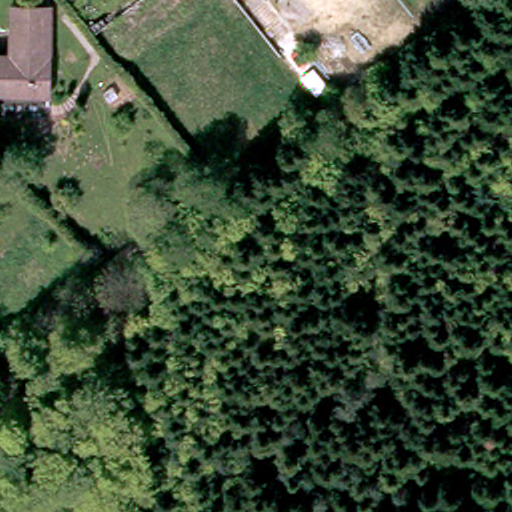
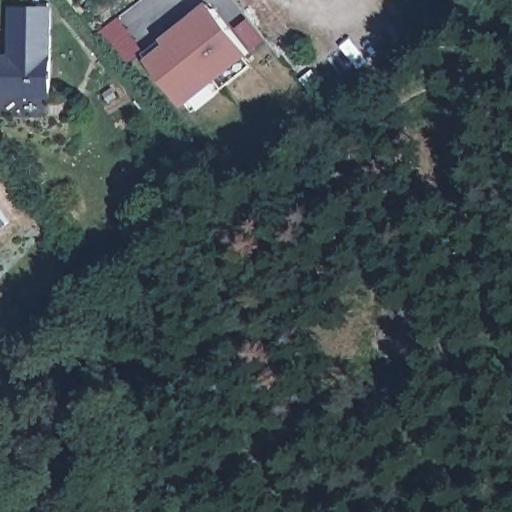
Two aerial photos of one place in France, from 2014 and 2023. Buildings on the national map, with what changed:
new [(208,1),(250,52),(245,56),(251,65),(197,110),(190,102),(185,106),(148,56),(143,53),(162,38),(208,1)]
unchanged [(14,4),(51,4),(51,91),(0,91),(0,52),(12,52),(14,4)]
new [(123,67),(97,35),(119,17),(143,53),(123,67)]

